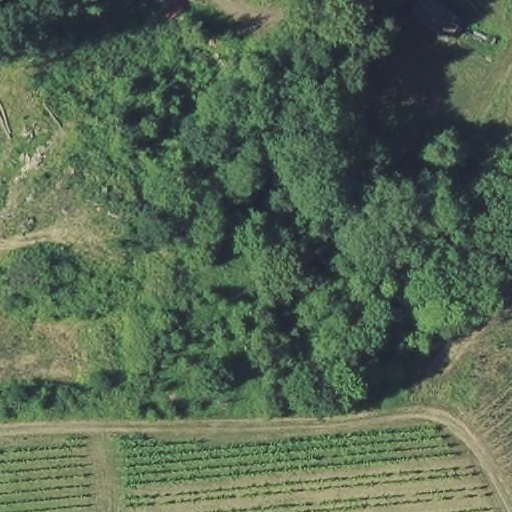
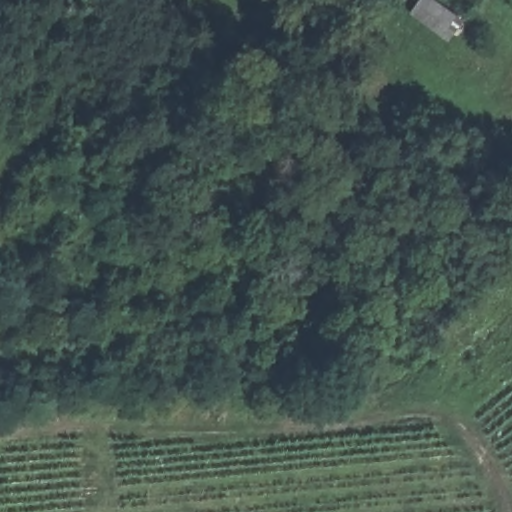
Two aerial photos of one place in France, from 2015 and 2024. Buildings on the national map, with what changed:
unchanged [(448,40),(408,14),(418,0),(439,0),(466,15),(448,40)]

